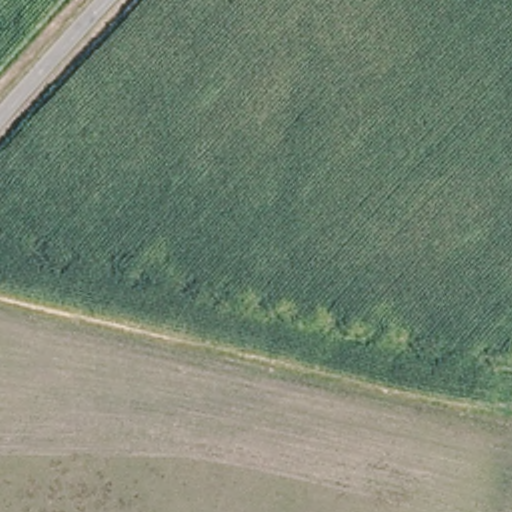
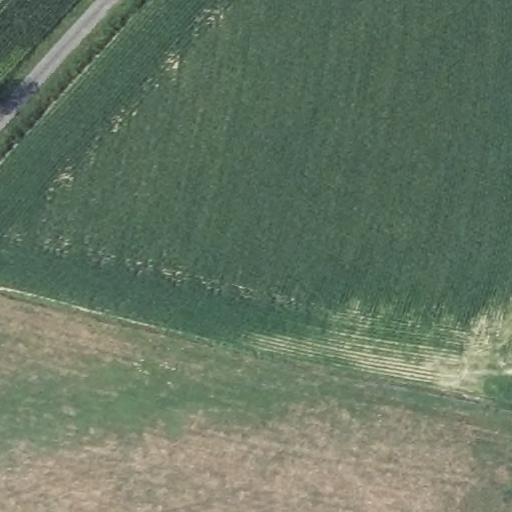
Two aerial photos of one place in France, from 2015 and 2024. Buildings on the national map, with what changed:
[]

